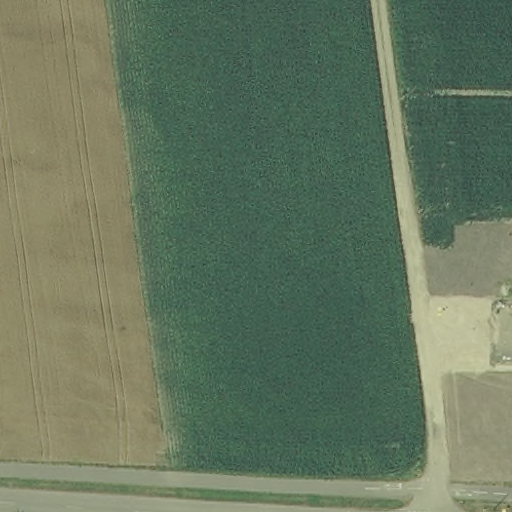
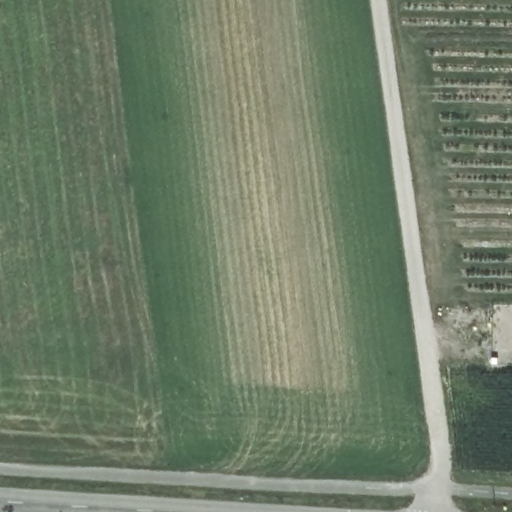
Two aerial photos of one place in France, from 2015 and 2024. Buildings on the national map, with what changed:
[]

